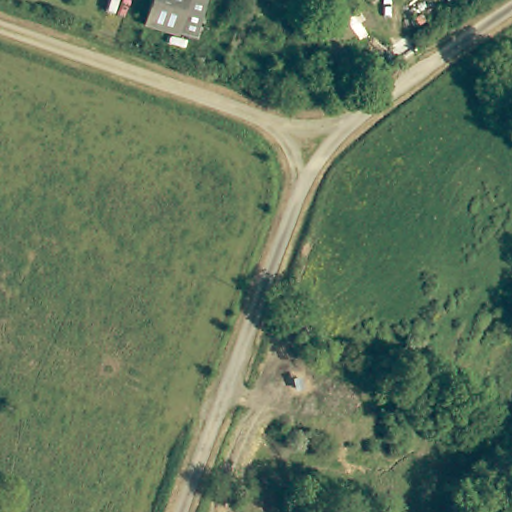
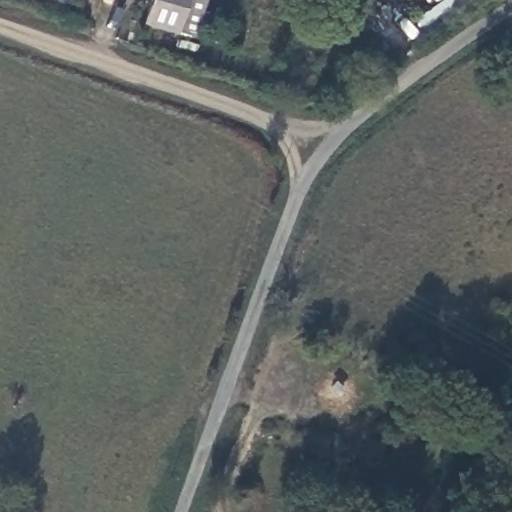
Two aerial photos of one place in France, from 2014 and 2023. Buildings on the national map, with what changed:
unchanged [(192,41),(179,37),(147,27),(155,0),(207,0),(192,41)]
unchanged [(377,65),(378,66),(379,67),(379,68),(380,70),(380,71),(380,72),(380,73),(380,74),(380,75),(380,76),(379,77),(378,78),(378,79),(377,80),(376,81),(375,81),(373,82),(371,83),(370,83),(368,83),(366,82),(364,81),(363,81),(361,79),(360,77),(360,76),(359,75),(359,74),(359,72),(359,71),(359,70),(360,69),(361,67),(361,66),(362,65),(363,64),(364,64),(365,63),(367,62),(368,62),(369,62),(370,62),(371,62),(372,62),(373,62),(375,63),(376,64),(377,65)]

